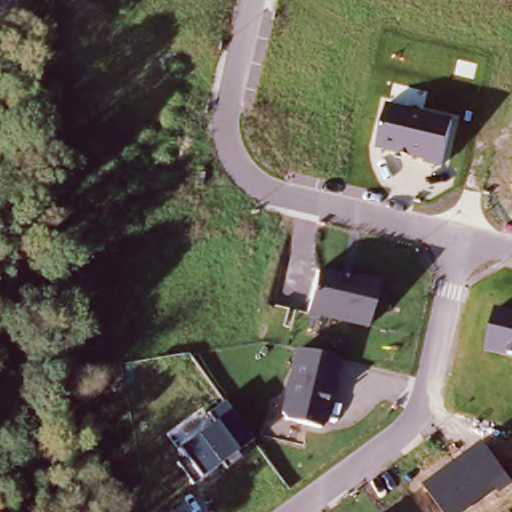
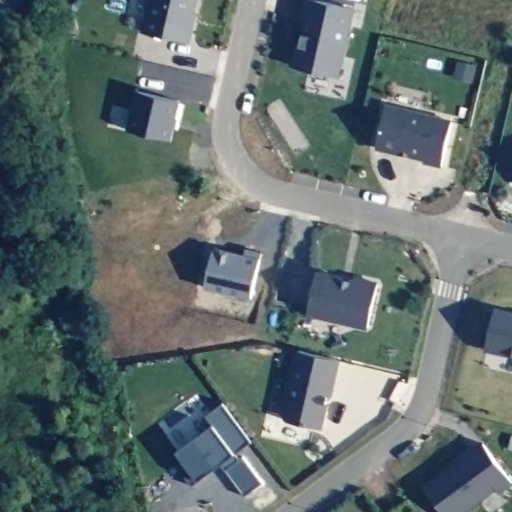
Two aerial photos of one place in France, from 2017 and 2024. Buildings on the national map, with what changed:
new [(188,13),(185,23),(189,24),(184,42),(142,33),(150,0),(194,0),(191,14),(188,13)]
new [(352,12),(336,80),(289,69),(295,47),(297,48),(304,21),(301,21),(305,1),(352,12)]
new [(180,94),(168,143),(129,134),(140,85),(180,94)]
unchanged [(384,107),(450,122),(440,167),(422,163),(422,160),(374,149),(384,107)]
new [(216,247),(245,253),(247,247),(263,251),(250,298),(205,288),(216,247)]
unchanged [(354,282),(354,280),(377,285),(367,328),(307,315),(316,273),(354,282)]
unchanged [(485,351),(495,307),(512,311),(512,357),(485,351)]
unchanged [(335,361),(332,376),(334,377),(330,393),(328,392),(320,430),(285,422),(282,416),(285,401),(284,401),(287,382),(290,382),(297,352),(335,361)]
unchanged [(223,402),(250,442),(237,452),(240,458),(225,470),(222,465),(199,481),(192,486),(177,466),(183,460),(176,452),(213,423),(207,415),(223,402)]
unchanged [(482,442),(512,482),(512,485),(500,495),(496,490),(466,512),(441,512),(422,486),(482,442)]

